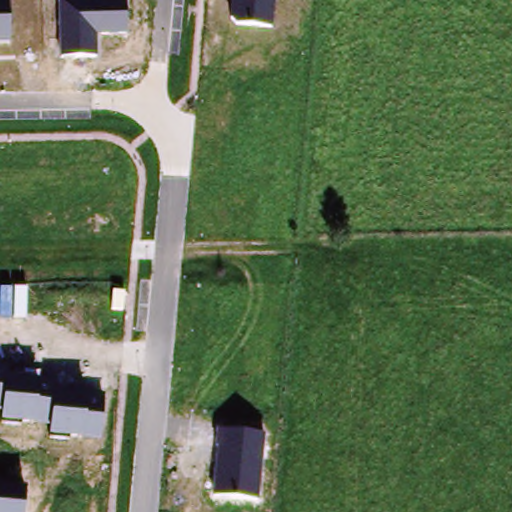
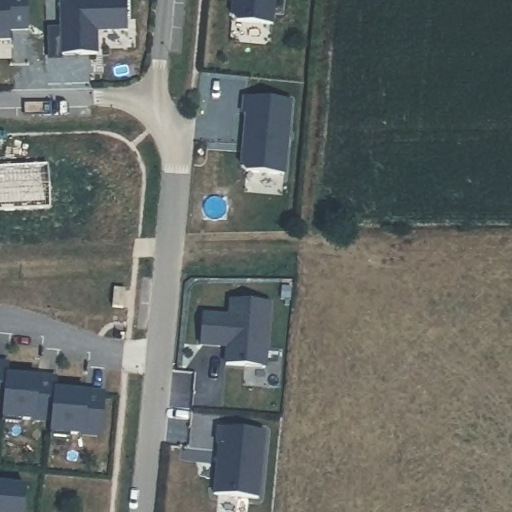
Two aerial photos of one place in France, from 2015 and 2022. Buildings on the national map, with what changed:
unchanged [(9,0),(9,41),(0,41),(0,0),(9,0)]
unchanged [(127,0),(127,30),(98,31),(99,55),(62,54),(60,0),(127,0)]
unchanged [(275,0),(273,24),(233,18),(235,0),(275,0)]
new [(243,111),(239,111),(241,94),(287,98),(280,171),(243,168),(238,163),(243,111)]
new [(201,312),(221,314),(221,321),(228,322),(231,297),(269,301),(263,366),(224,362),(226,342),(218,341),(218,343),(198,341),(201,312)]
unchanged [(40,372),(39,382),(107,392),(99,439),(51,434),(52,424),(2,418),(3,409),(0,408),(0,368),(40,372)]
unchanged [(219,426),(266,432),(259,498),(211,492),(219,426)]
unchanged [(23,512),(0,512),(0,481),(26,483),(23,512)]

